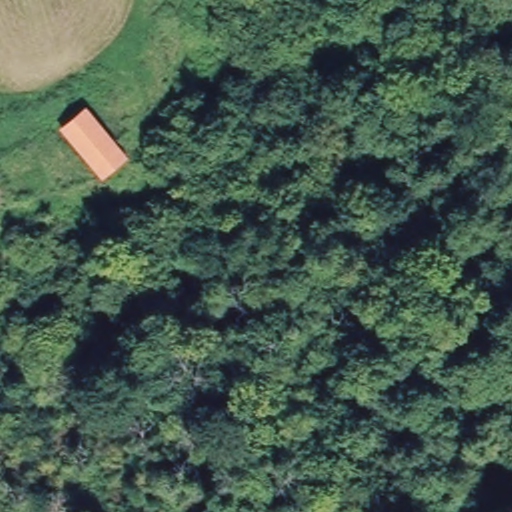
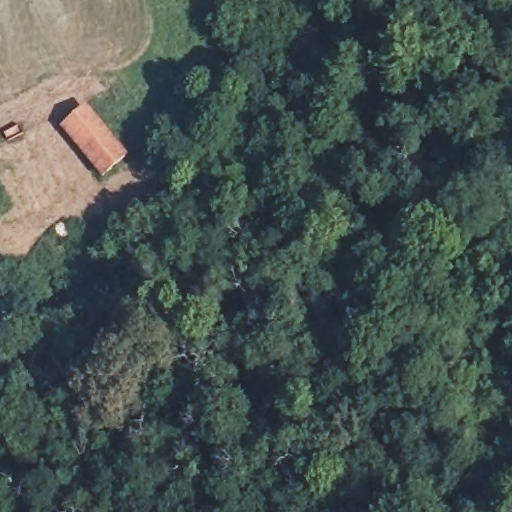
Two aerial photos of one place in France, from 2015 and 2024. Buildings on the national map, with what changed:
unchanged [(60,127),(90,104),(130,159),(102,180),(60,127)]

